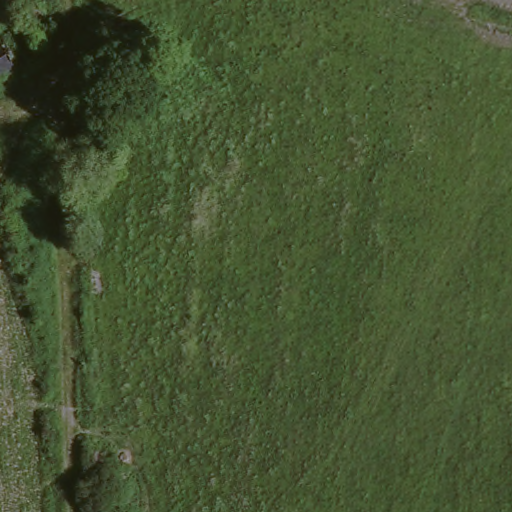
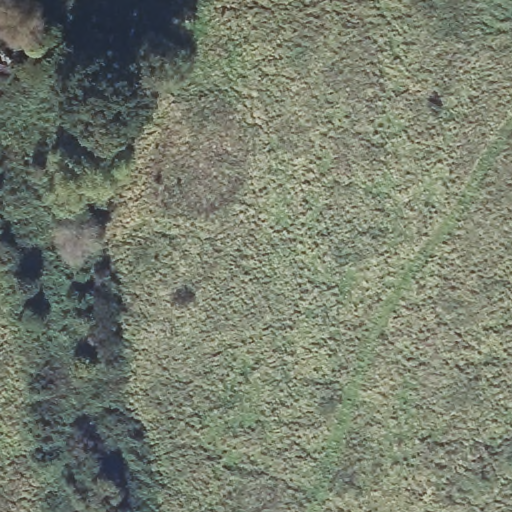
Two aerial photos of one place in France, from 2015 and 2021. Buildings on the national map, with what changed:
unchanged [(27,11),(33,22),(38,20),(41,19),(44,19),(46,20),(48,21),(49,23),(49,25),(48,29),(46,31),(40,36),(44,44),(0,68),(0,26),(27,11)]

